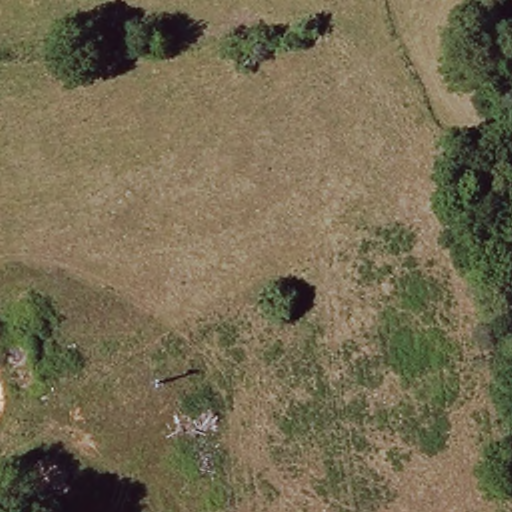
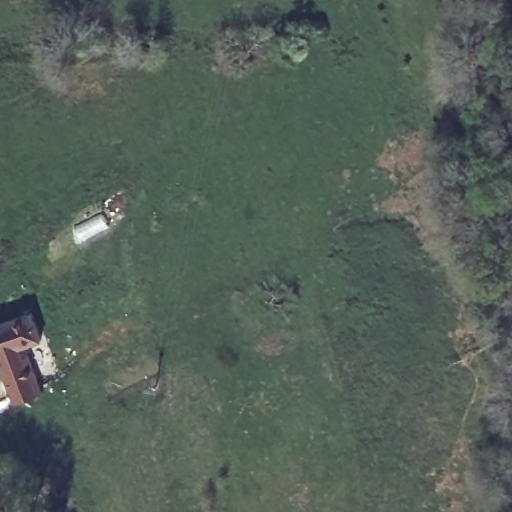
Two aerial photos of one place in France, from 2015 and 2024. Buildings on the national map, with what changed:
new [(34,311),(44,341),(28,347),(43,393),(14,403),(0,364),(0,323),(34,311)]
demolished [(0,377),(0,354),(24,348),(39,397),(7,404),(0,377)]
demolished [(10,477),(0,487),(0,460),(10,477)]

